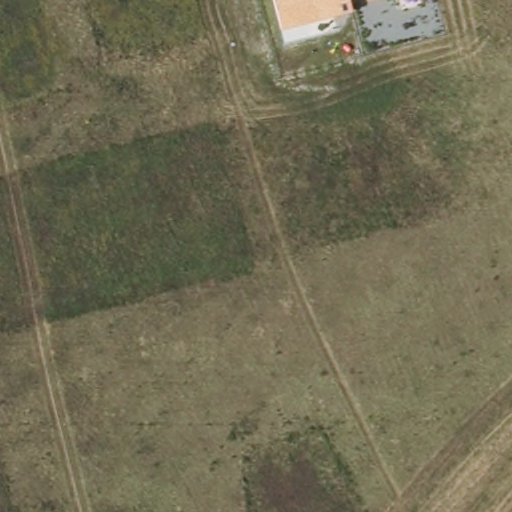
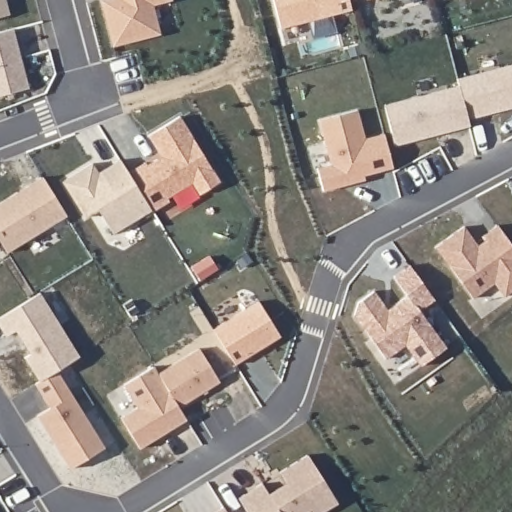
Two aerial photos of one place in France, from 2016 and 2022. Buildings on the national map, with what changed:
new [(0,0),(5,0),(9,15),(0,17),(0,0)]
new [(172,0),(152,5),(160,34),(113,46),(101,1),(105,0),(172,0)]
unchanged [(281,29),(273,0),(351,0),(354,11),(281,29)]
new [(29,89),(0,96),(0,32),(12,29),(29,89)]
new [(457,85),(456,79),(512,64),(512,109),(468,120),(470,126),(395,146),(385,104),(457,85)]
new [(330,165),(318,120),(357,110),(365,140),(383,135),(392,168),(363,175),(365,180),(322,191),(317,169),(330,165)]
new [(145,163),(147,166),(161,157),(148,136),(179,117),(219,182),(199,195),(192,182),(167,198),(169,201),(152,212),(151,210),(128,174),(145,163)]
new [(97,174),(102,170),(120,160),(128,174),(151,210),(112,234),(97,210),(85,218),(62,182),(92,164),(97,174)]
new [(66,216),(7,253),(0,242),(0,204),(42,177),(66,216)]
new [(478,246),(485,241),(482,237),(497,226),(512,246),(512,291),(504,296),(495,283),(473,298),(436,247),(464,227),(478,246)]
new [(358,303),(373,291),(387,311),(407,296),(393,277),(410,266),(434,300),(419,310),(446,348),(421,366),(406,345),(386,360),(357,320),(358,303)]
new [(79,357),(57,370),(39,381),(25,358),(31,355),(16,330),(6,336),(0,327),(0,318),(40,293),(79,357)]
new [(258,302),(280,336),(235,365),(213,330),(258,302)]
new [(199,349),(219,382),(179,407),(158,375),(199,349)]
new [(138,408),(124,385),(154,367),(158,375),(179,407),(186,420),(140,448),(121,419),(138,408)]
new [(39,381),(57,370),(105,448),(70,470),(37,416),(50,408),(35,384),(39,381)]
new [(262,484),(268,495),(286,483),(280,473),(308,455),(337,503),(323,512),(312,512),(311,510),(307,512),(247,512),(239,498),(262,484)]
new [(227,512),(215,512),(224,506),(227,512)]

